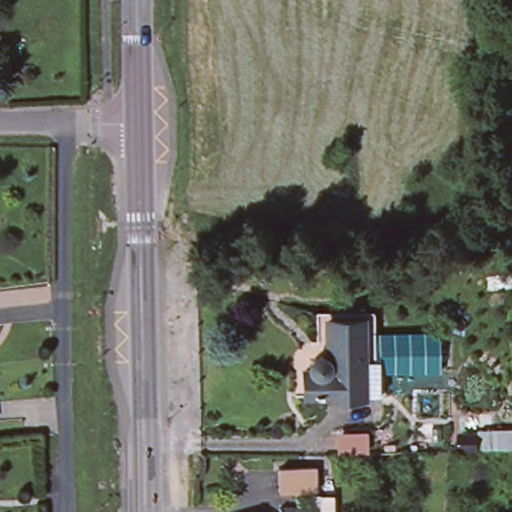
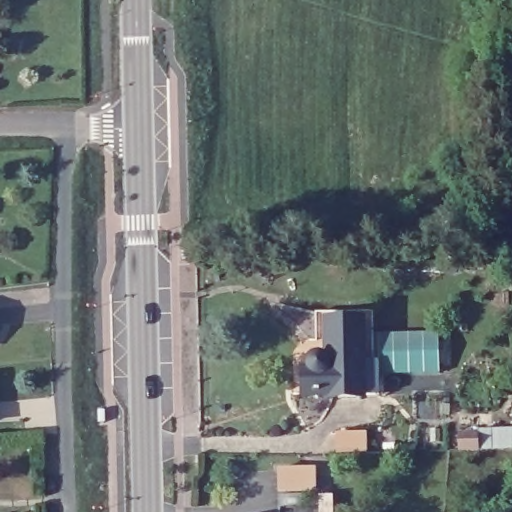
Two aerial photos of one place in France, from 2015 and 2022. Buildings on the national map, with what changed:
unchanged [(367,400),(352,401),(316,402),(316,400),(295,400),(293,372),(295,369),(299,364),(304,362),(310,363),(316,365),(315,326),(315,318),(362,319),(363,367),(367,367),(367,400)]
unchanged [(278,490),(278,467),(313,466),(313,489),(278,490)]
unchanged [(313,512),(272,512),(313,511),(313,512)]

